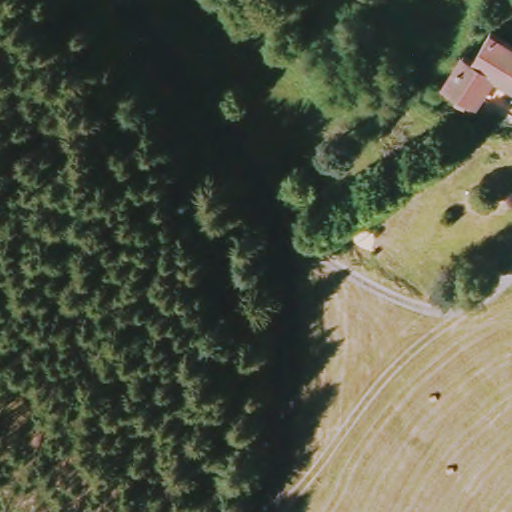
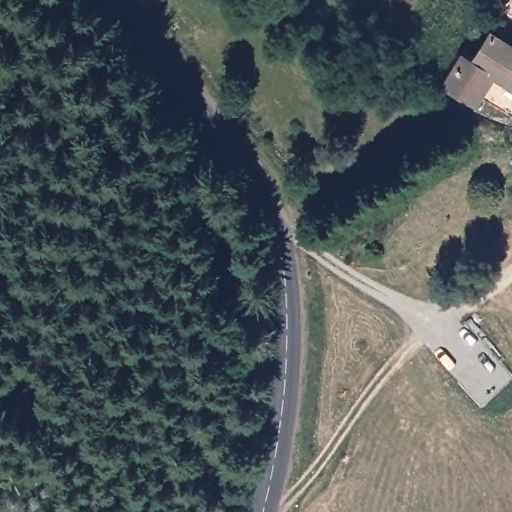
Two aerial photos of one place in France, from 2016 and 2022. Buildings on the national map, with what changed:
unchanged [(448,91),(467,59),(477,64),(495,37),(512,49),(512,89),(498,80),(477,111),(474,115),(461,103),(448,91)]

